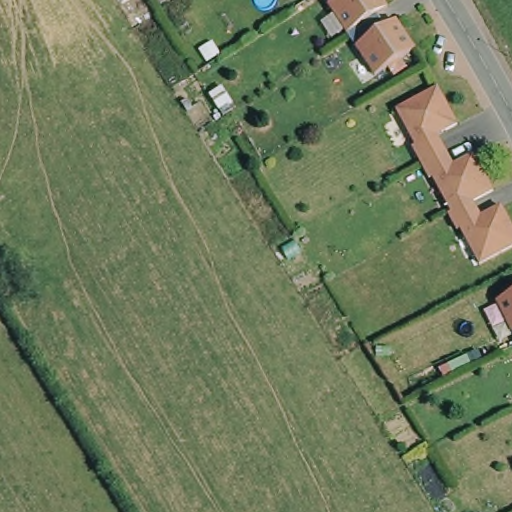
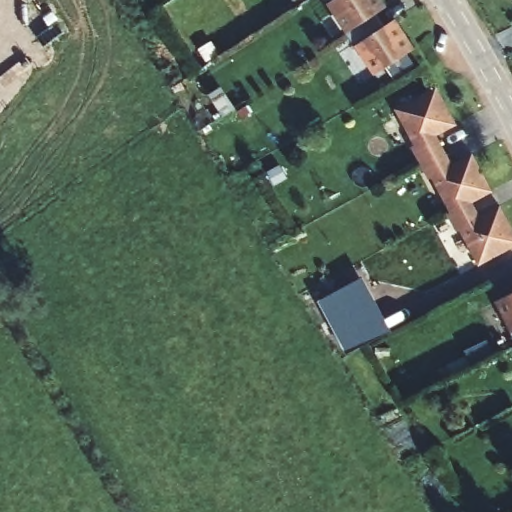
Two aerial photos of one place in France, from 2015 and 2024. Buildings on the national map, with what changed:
unchanged [(397,3),(380,17),(388,30),(405,18),(423,45),(383,73),(334,0),(394,0),(397,3)]
unchanged [(425,182),(409,155),(415,150),(395,113),(437,89),(458,124),(438,136),(455,164),(473,153),(497,194),(478,205),(454,219),(432,178),(425,182)]
unchanged [(454,219),(478,205),(485,216),(503,206),(512,222),(512,248),(482,266),(461,230),(453,233),(448,223),(454,219)]
new [(392,332),(345,354),(315,300),(362,276),(392,332)]
unchanged [(512,295),(512,333),(497,303),(512,295)]

